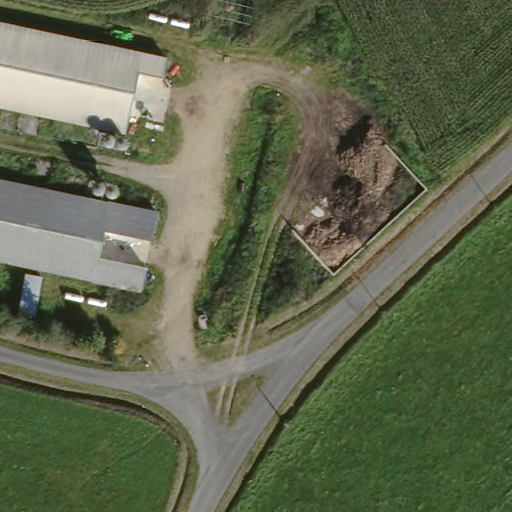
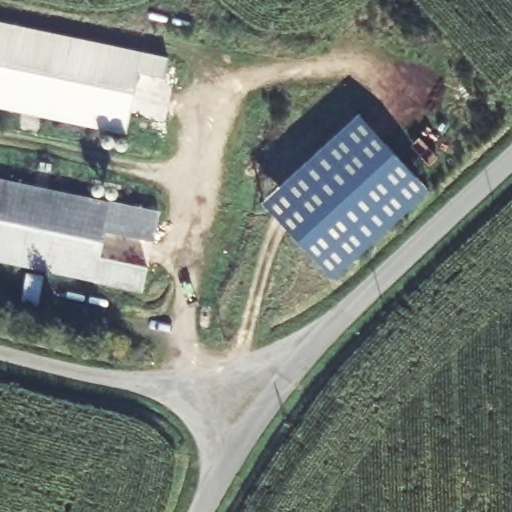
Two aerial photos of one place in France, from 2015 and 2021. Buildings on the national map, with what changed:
unchanged [(0,106),(0,18),(175,54),(160,121),(130,114),(127,133),(0,106)]
new [(357,116),(430,191),(337,282),(264,207),(357,116)]
unchanged [(0,260),(0,178),(160,211),(142,292),(0,260)]

